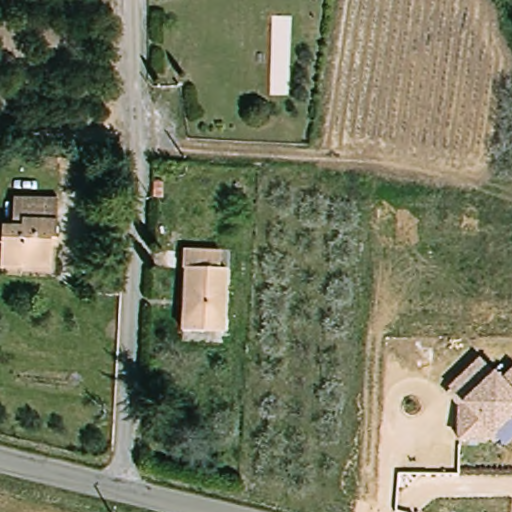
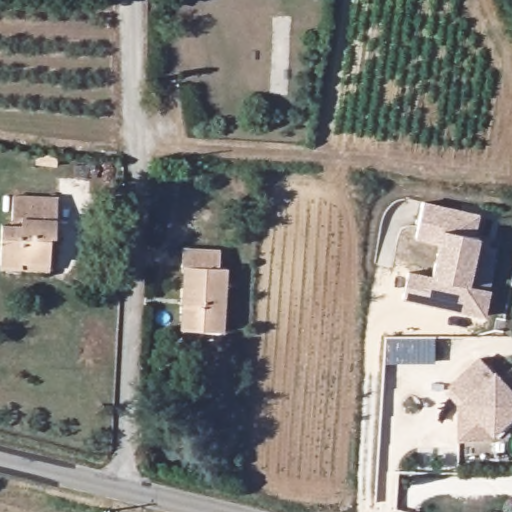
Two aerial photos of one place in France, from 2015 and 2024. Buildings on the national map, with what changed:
unchanged [(57,238),(51,238),(50,267),(20,265),(19,272),(0,271),(0,235),(25,237),(25,224),(11,223),(13,195),(60,199),(57,238)]
new [(408,271),(432,276),(440,242),(416,237),(424,201),(478,214),(473,236),(478,237),(467,285),(490,291),(485,317),(450,309),(451,305),(441,303),(441,307),(403,298),(408,271)]
unchanged [(177,267),(178,249),(220,251),(219,273),(225,274),(221,330),(180,327),(185,268),(177,267)]
new [(435,313),(444,315),(443,320),(434,317),(435,313)]
new [(435,363),(385,363),(385,336),(435,336),(435,363)]
unchanged [(512,419),(512,439),(505,445),(494,435),(488,441),(458,440),(457,405),(447,394),(451,390),(448,387),(479,357),(493,371),(500,378),(512,366),(512,417),(511,418),(512,419)]

